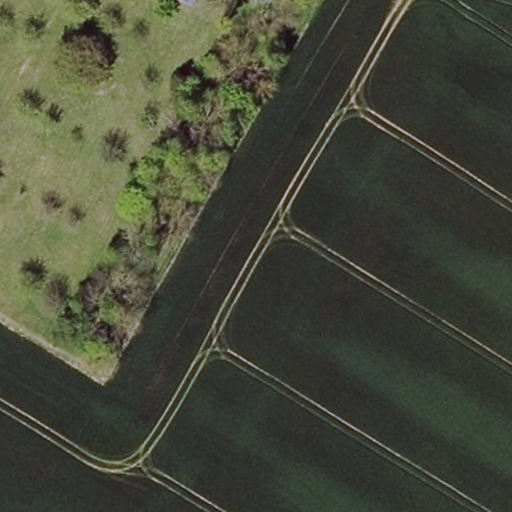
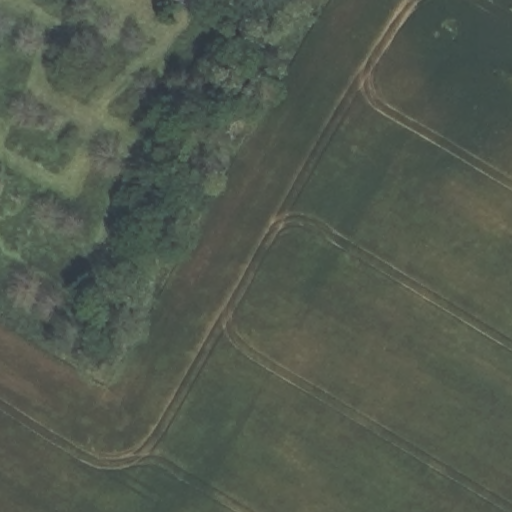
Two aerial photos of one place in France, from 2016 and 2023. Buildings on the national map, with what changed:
unchanged [(188,0),(193,0),(192,2),(188,0)]

